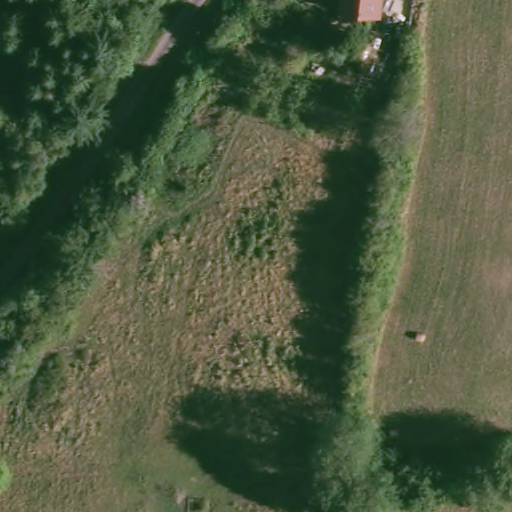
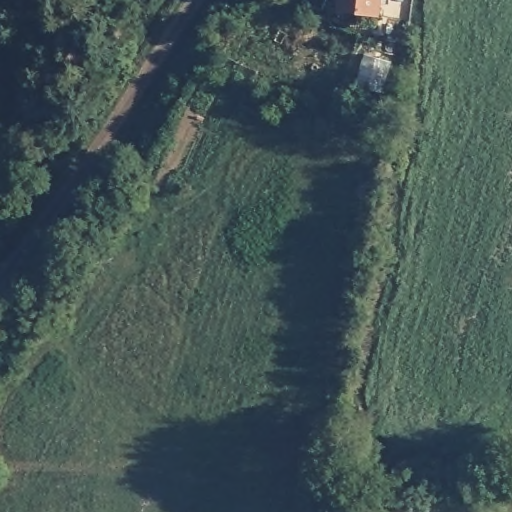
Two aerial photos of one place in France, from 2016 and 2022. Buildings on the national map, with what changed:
unchanged [(361,13),(360,23),(342,21),(344,0),(384,0),(382,16),(361,13)]
unchanged [(371,41),(368,61),(355,59),(358,39),(371,41)]

